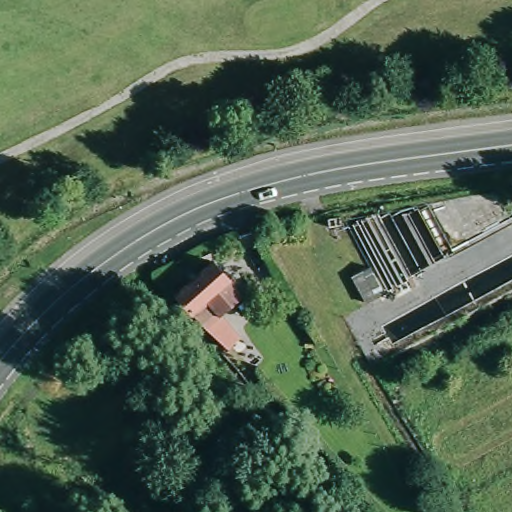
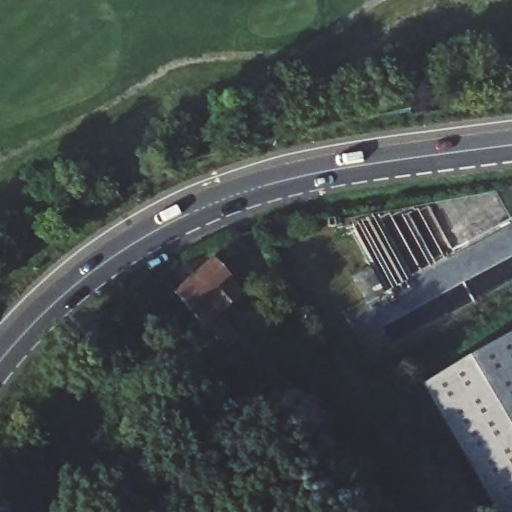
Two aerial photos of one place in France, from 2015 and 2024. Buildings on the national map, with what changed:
unchanged [(230,345),(224,340),(172,287),(206,255),(236,286),(215,307),(235,329),(231,333),(236,339),(230,345)]
unchanged [(394,293),(370,306),(348,275),(376,262),(394,293)]
new [(512,335),(512,512),(500,512),(423,385),(512,335)]

